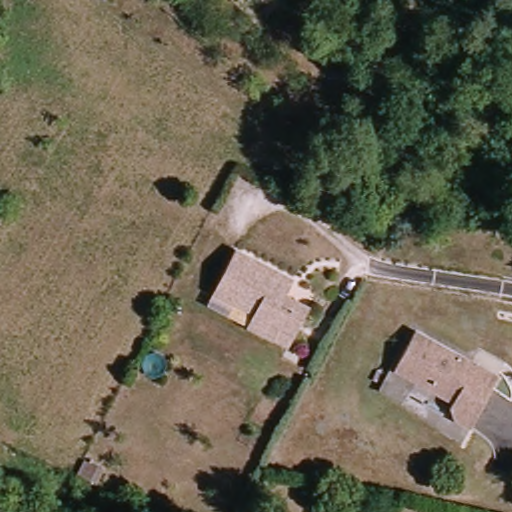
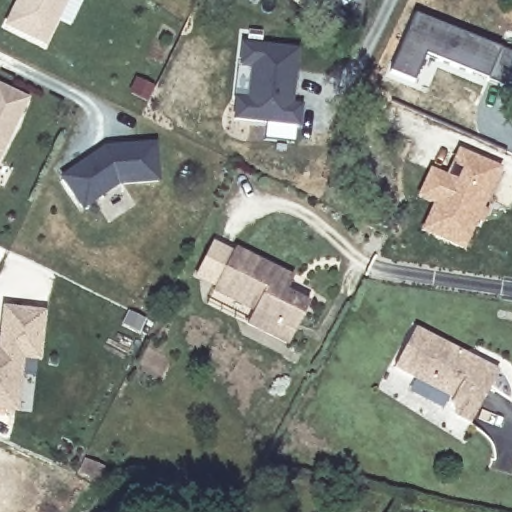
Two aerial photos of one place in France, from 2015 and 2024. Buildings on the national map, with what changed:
new [(17,0),(65,0),(42,46),(4,27),(17,0)]
new [(313,5),(311,0),(322,0),(313,5)]
new [(512,56),(512,61),(501,87),(425,54),(414,81),(390,71),(414,14),(512,56)]
new [(235,80),(241,36),(245,36),(247,27),(263,29),(262,42),(300,48),(294,102),(304,104),(301,127),(297,127),(295,142),(264,139),(265,124),(232,120),(235,80)]
new [(24,101),(16,117),(0,149),(0,89),(24,101)]
new [(104,149),(153,147),(156,183),(115,186),(80,209),(59,179),(104,149)]
new [(423,231),(434,205),(419,197),(432,168),(447,176),(460,149),(502,169),(465,249),(423,231)]
unchanged [(282,339),(255,326),(217,306),(223,292),(243,253),(294,278),(300,282),(295,295),(318,307),(305,333),(297,347),(282,339)]
new [(1,310),(39,314),(35,358),(18,357),(12,411),(0,409),(0,320),(1,310)]
unchanged [(477,422),(472,417),(469,412),(468,408),(467,402),(405,372),(423,332),(480,361),(507,375),(504,380),(482,427),(477,422)]

